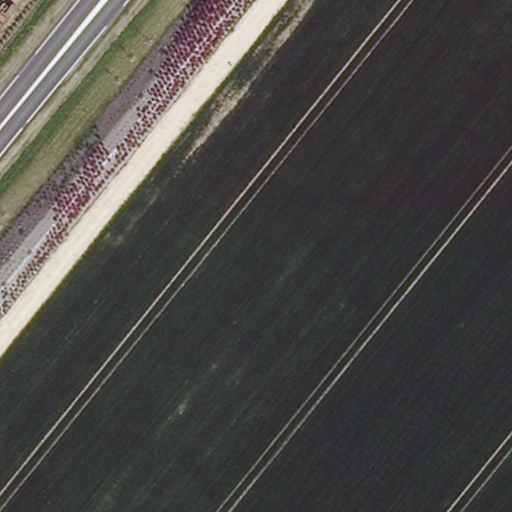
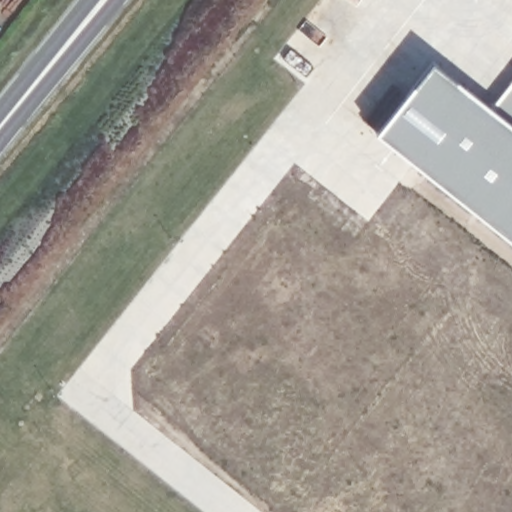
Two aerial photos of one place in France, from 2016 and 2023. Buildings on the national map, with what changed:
new [(431,63),(490,110),(512,83),(512,241),(375,132),(431,63)]

